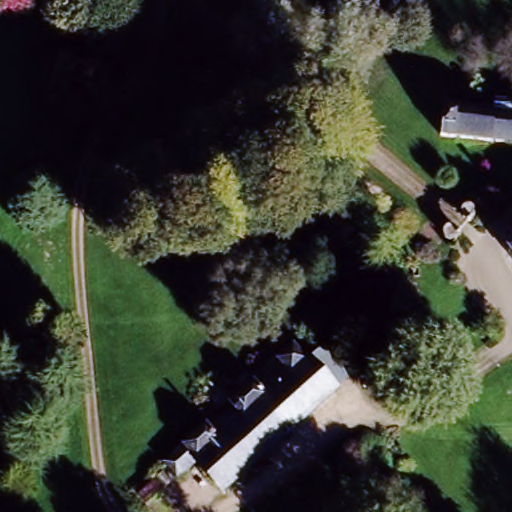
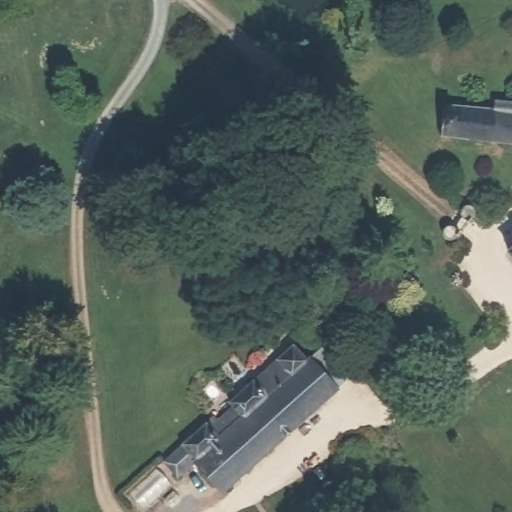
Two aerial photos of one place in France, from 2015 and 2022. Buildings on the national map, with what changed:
unchanged [(512,145),(442,138),(446,103),(497,108),(499,100),(512,101),(512,145)]
unchanged [(366,363),(339,387),(303,345),(329,321),(366,363)]
unchanged [(169,458),(184,445),(214,419),(225,432),(246,415),(235,403),(261,380),(272,393),(294,375),(283,362),(303,345),(339,387),(223,488),(197,458),(182,472),(169,458)]

